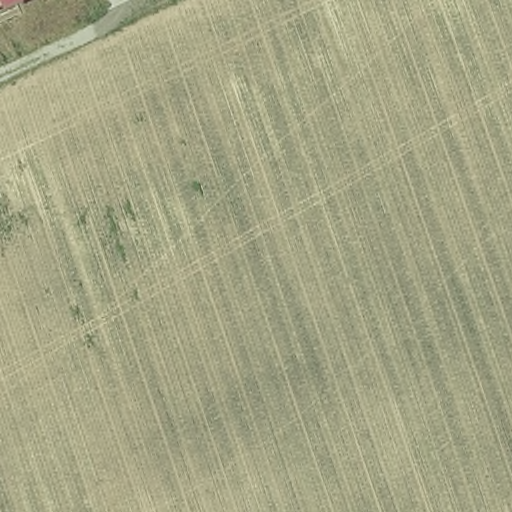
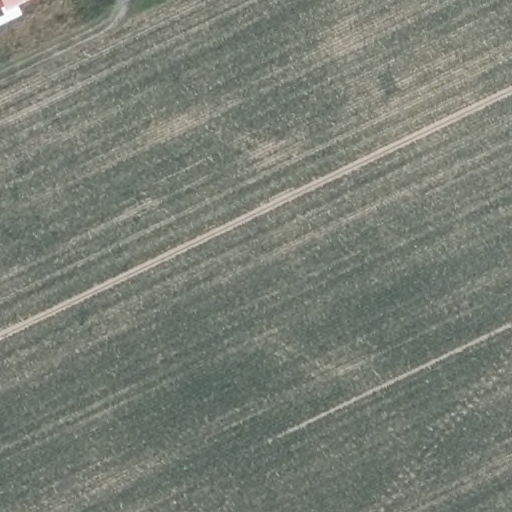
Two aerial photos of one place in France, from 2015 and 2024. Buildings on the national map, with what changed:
unchanged [(6,11),(4,6),(0,7),(0,0),(30,0),(6,11)]

